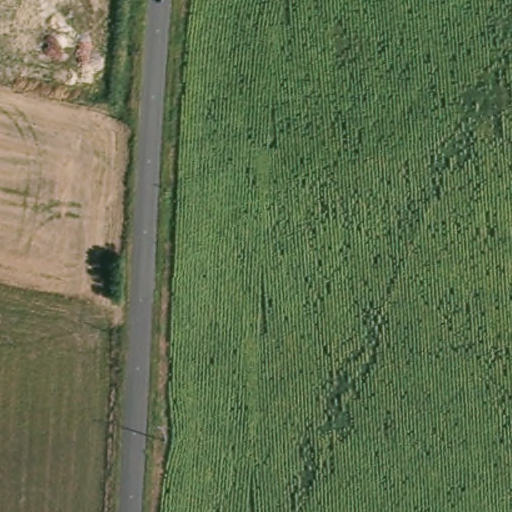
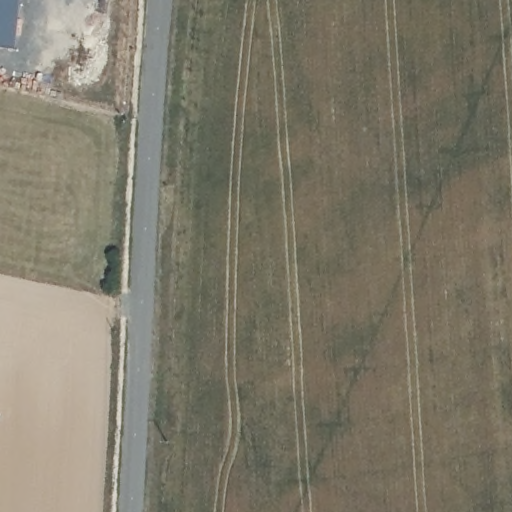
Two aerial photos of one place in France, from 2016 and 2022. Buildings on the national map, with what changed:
new [(0,48),(0,0),(19,0),(14,49),(0,48)]

